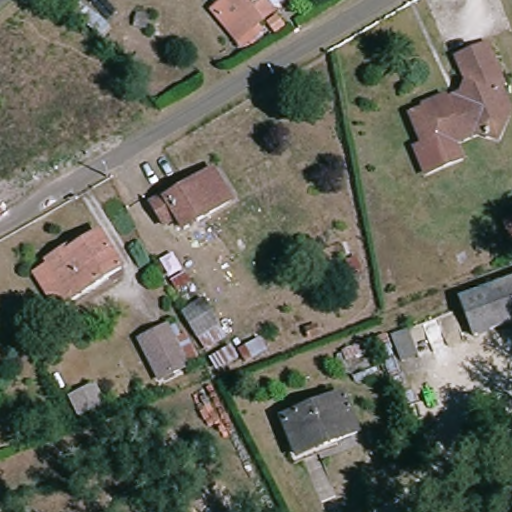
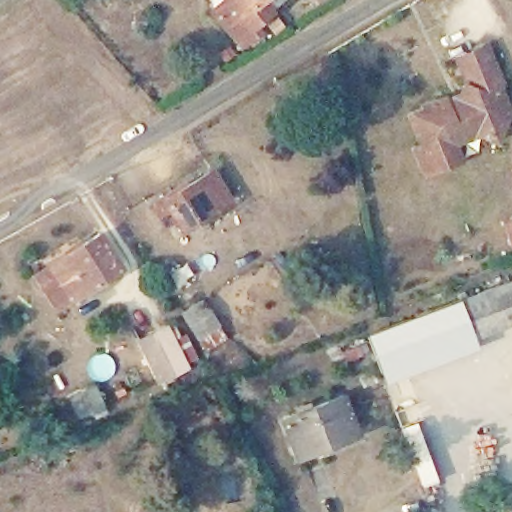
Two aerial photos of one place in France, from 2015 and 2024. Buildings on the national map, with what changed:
unchanged [(240,18),(226,0),(263,0),(272,11),(251,30),(241,39),(231,26),(240,18)]
unchanged [(457,139),(465,156),(430,172),(419,146),(427,144),(415,113),(429,109),(428,105),(450,99),(451,101),(463,97),(472,80),(462,55),(491,44),(507,80),(505,86),(512,104),(512,109),(501,139),(482,131),(463,139),(462,136),(457,139)]
unchanged [(231,200),(183,229),(176,217),(163,225),(150,203),(184,184),(186,187),(212,170),(231,200)]
unchanged [(507,224),(512,222),(512,236),(507,224)]
unchanged [(51,284),(39,266),(104,227),(125,263),(75,293),(61,302),(51,284)]
unchanged [(172,254),(199,296),(183,303),(159,262),(172,254)]
unchanged [(474,338),(460,299),(512,279),(512,323),(474,338)]
unchanged [(225,338),(205,351),(181,312),(202,299),(225,338)]
new [(476,344),(383,379),(366,332),(460,299),(474,338),(476,344)]
unchanged [(186,366),(158,379),(139,340),(167,327),(186,366)]
demolished [(404,359),(395,337),(409,330),(418,354),(404,359)]
unchanged [(104,404),(77,417),(67,397),(94,384),(104,404)]
unchanged [(342,396),(357,433),(297,457),(282,420),(342,396)]

